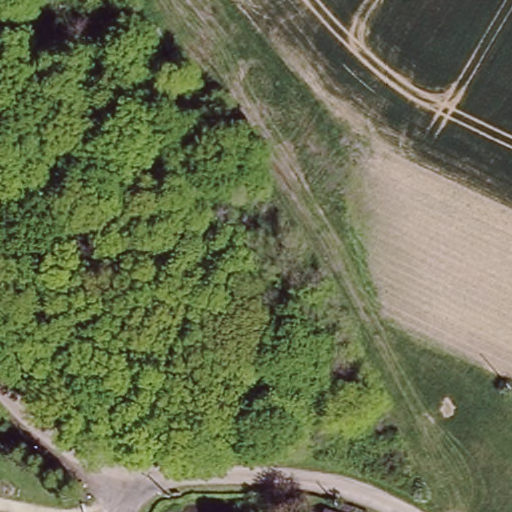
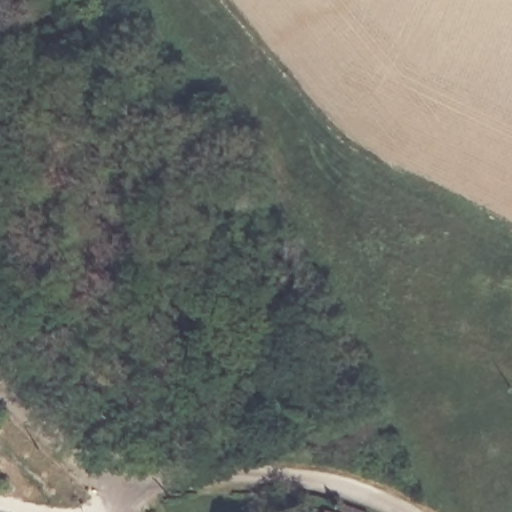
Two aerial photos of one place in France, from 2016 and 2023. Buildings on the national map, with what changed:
unchanged [(327,505),(328,500),(340,505),(343,497),(366,506),(365,512),(309,512),(313,500),(327,505)]

